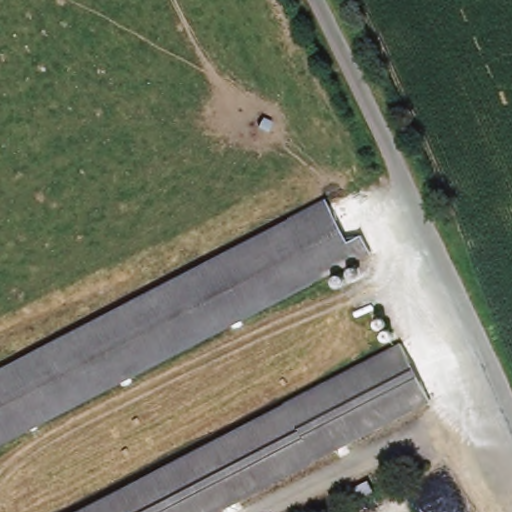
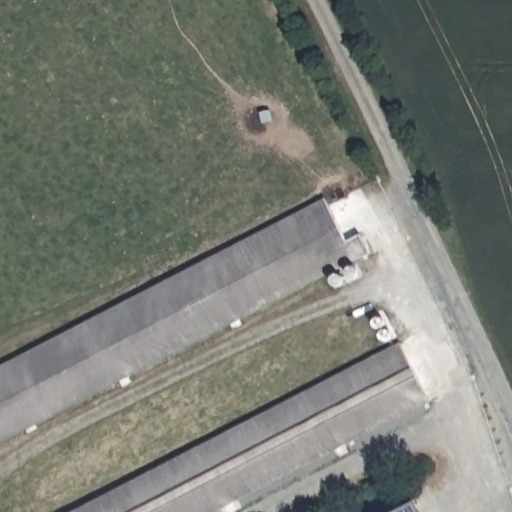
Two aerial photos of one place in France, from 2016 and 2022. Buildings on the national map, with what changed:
unchanged [(6,374),(21,367),(191,283),(193,281),(210,273),(328,215),(345,245),(361,237),(368,253),(0,441),(0,377),(6,374)]
unchanged [(214,512),(78,512),(402,347),(429,403),(214,512)]

